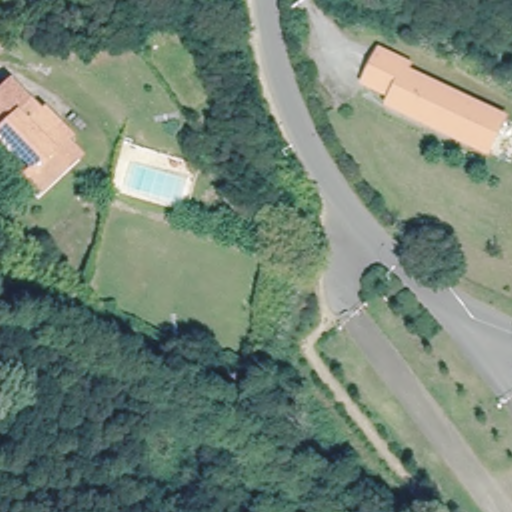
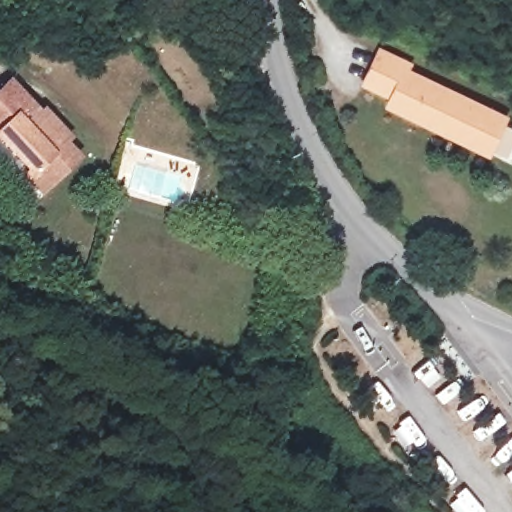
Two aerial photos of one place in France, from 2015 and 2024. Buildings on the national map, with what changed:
unchanged [(406,67),(505,114),(489,148),(389,100),(393,92),(365,79),(380,47),(409,61),(406,67)]
unchanged [(26,176),(31,171),(0,137),(0,91),(10,82),(41,115),(43,114),(66,142),(73,150),(79,157),(41,191),(26,176)]

